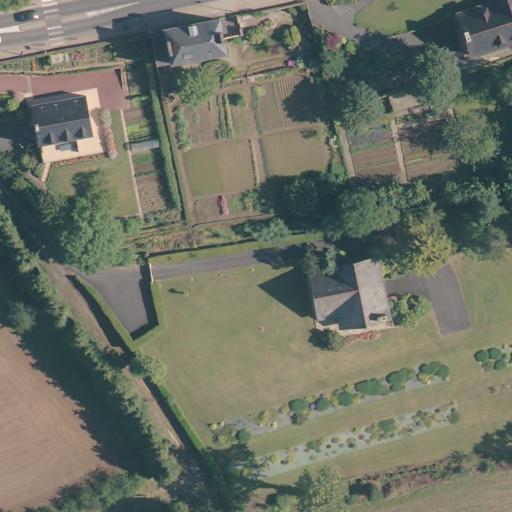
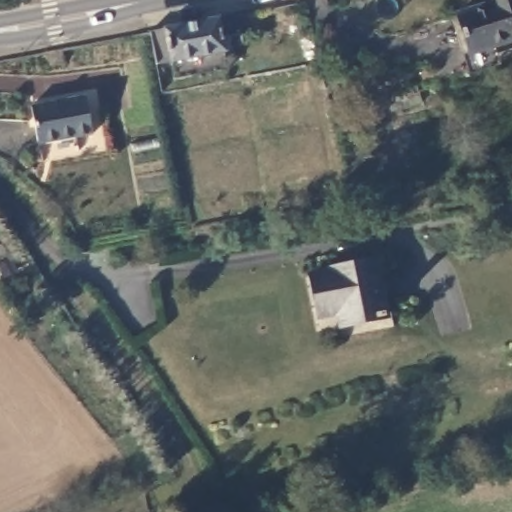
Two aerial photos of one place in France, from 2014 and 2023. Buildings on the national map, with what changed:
unchanged [(455,14),(493,0),(512,0),(512,37),(469,53),(455,14)]
unchanged [(157,32),(172,29),(226,19),(233,51),(180,61),(163,65),(157,32)]
unchanged [(81,98),(88,136),(35,146),(29,107),(81,98)]
unchanged [(382,313),(374,314),(374,312),(359,315),(358,309),(337,312),(336,307),(317,310),(310,268),(331,265),(330,263),(375,257),(382,313)]

